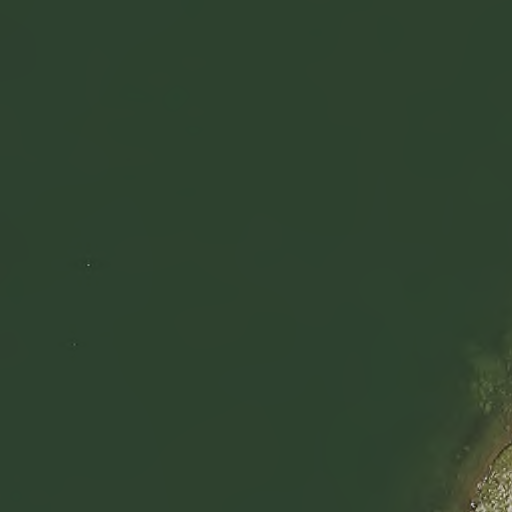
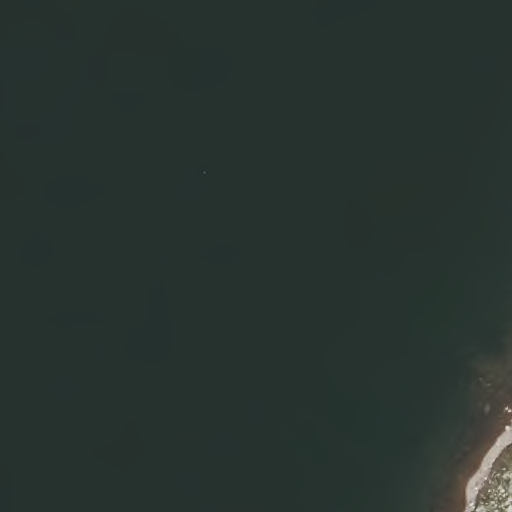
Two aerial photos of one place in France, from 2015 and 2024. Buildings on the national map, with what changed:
[]

